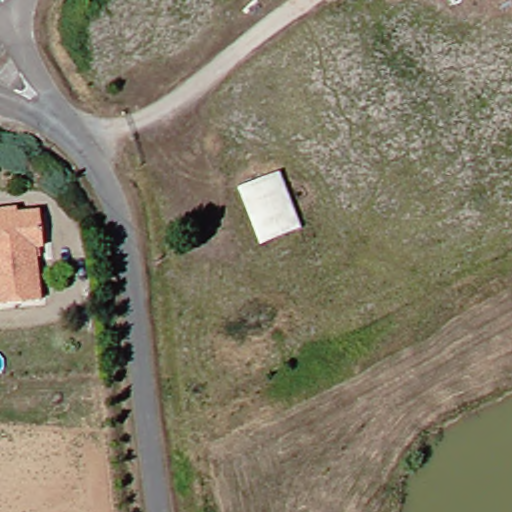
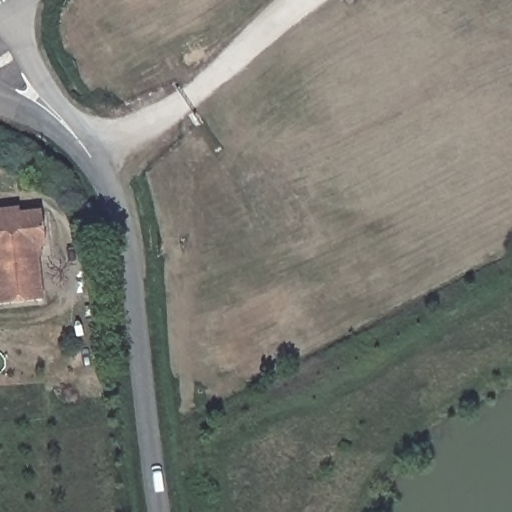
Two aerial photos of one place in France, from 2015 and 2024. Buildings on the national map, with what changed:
demolished [(274,174),(296,231),(257,247),(235,188),(274,174)]
unchanged [(9,216),(33,214),(36,250),(26,250),(31,301),(0,304),(0,210),(9,209),(9,216)]

